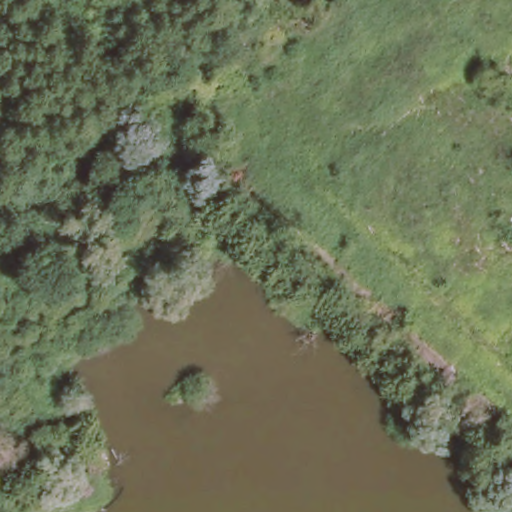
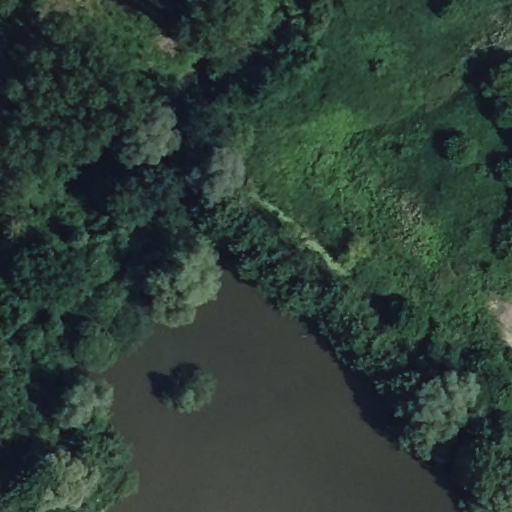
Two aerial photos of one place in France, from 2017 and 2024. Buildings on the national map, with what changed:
unchanged [(114,71),(92,87),(82,72),(103,56),(114,71)]

